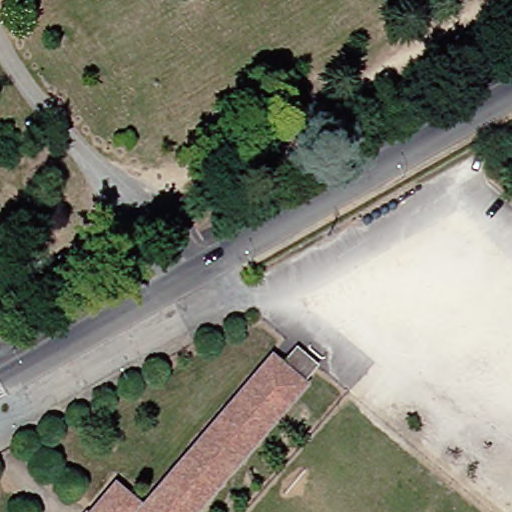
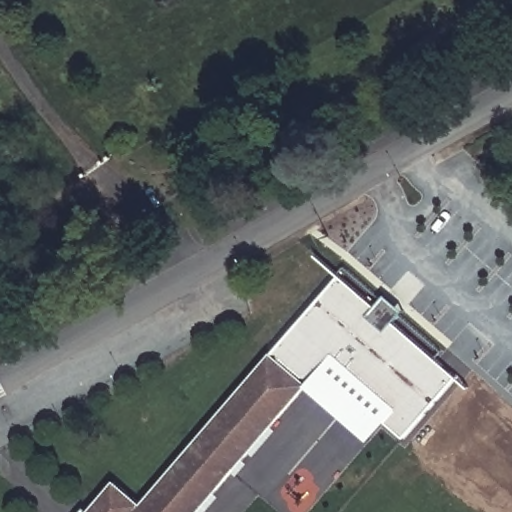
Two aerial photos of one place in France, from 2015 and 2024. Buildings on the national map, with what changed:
new [(377,306),(387,295),(406,311),(397,320),(460,377),(405,437),(387,421),(369,441),(307,385),(302,388),(299,385),(311,371),(312,370),(292,353),(279,368),(268,359),(341,275),(377,306)]
unchanged [(138,510),(268,359),(279,368),(292,353),(312,370),(311,371),(299,385),(302,388),(197,512),(89,512),(111,486),(138,510)]

